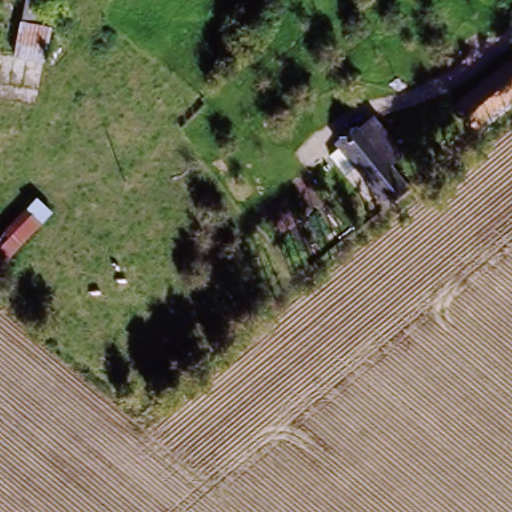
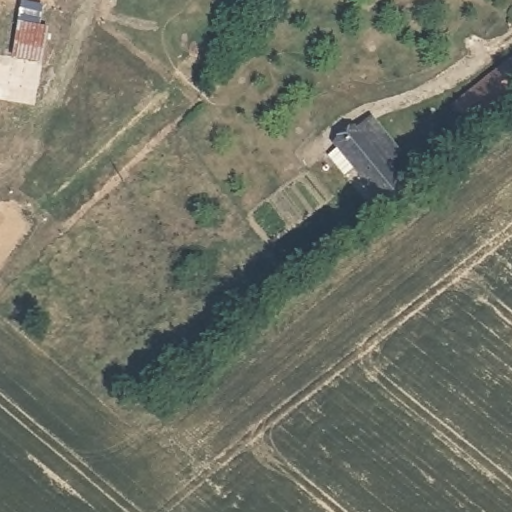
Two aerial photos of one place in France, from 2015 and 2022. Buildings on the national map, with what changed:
unchanged [(12,56),(24,0),(51,0),(47,25),(54,26),(47,63),(12,56)]
unchanged [(462,115),(508,70),(512,74),(512,94),(477,129),(462,115)]
unchanged [(374,117),(405,156),(385,171),(356,132),(374,117)]
unchanged [(384,208),(352,169),(341,179),(325,157),(336,148),(356,132),(385,171),(402,192),(384,208)]
unchanged [(0,234),(24,210),(40,226),(2,264),(0,262),(0,234)]

